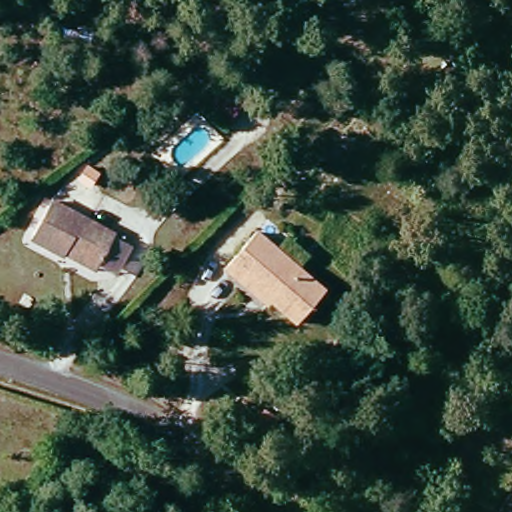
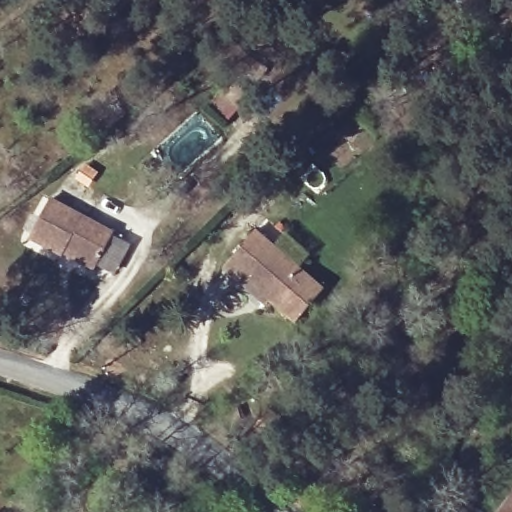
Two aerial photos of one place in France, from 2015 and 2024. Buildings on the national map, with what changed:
unchanged [(41,235),(59,199),(122,231),(108,260),(104,268),(71,251),(41,235)]
unchanged [(256,283),(240,269),(271,230),(337,287),(312,319),(288,299),(282,305),(256,283)]
unchanged [(291,419),(306,428),(294,451),(279,443),(291,419)]

